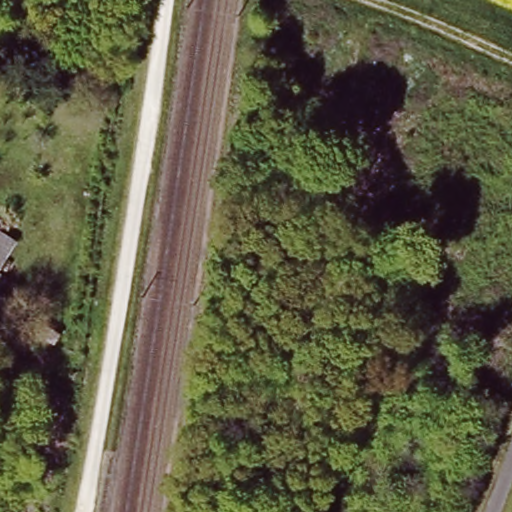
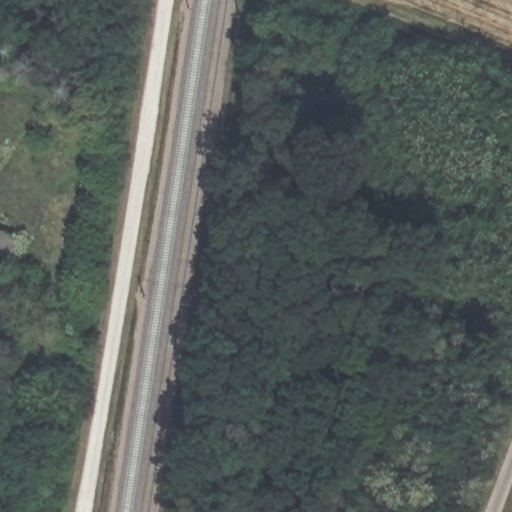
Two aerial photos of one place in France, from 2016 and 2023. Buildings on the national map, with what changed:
unchanged [(245,129),(243,149),(230,149),(231,127),(234,127),(233,128),(245,129)]
unchanged [(0,265),(0,233),(15,242),(0,265)]
unchanged [(0,288),(0,275),(6,279),(0,288)]

